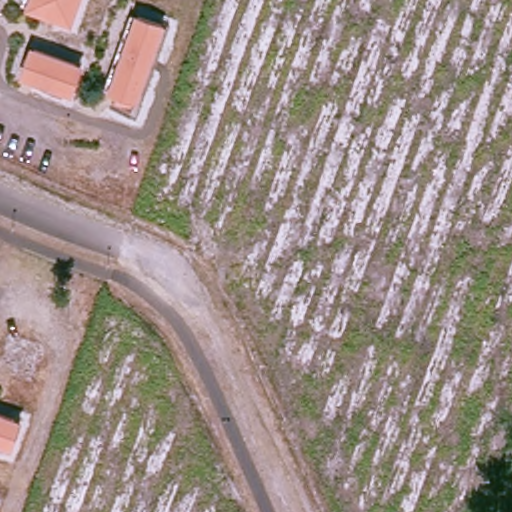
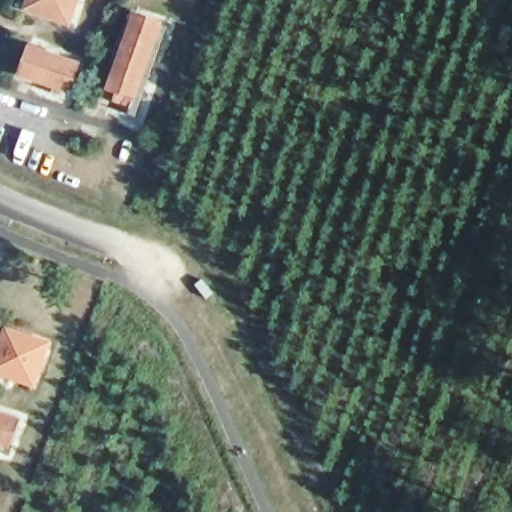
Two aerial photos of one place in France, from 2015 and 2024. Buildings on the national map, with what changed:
unchanged [(67,22),(30,8),(32,0),(75,0),(67,22)]
unchanged [(116,98),(109,96),(136,22),(160,31),(130,114),(112,107),(116,98)]
unchanged [(74,64),(64,91),(22,76),(32,50),(74,64)]
new [(0,376),(0,341),(5,325),(53,341),(37,389),(0,376)]
demolished [(55,341),(42,379),(4,365),(17,328),(55,341)]
unchanged [(0,415),(17,422),(8,448),(0,445),(0,415)]

